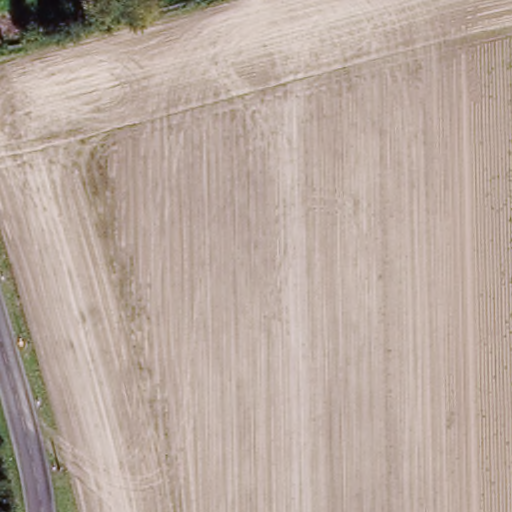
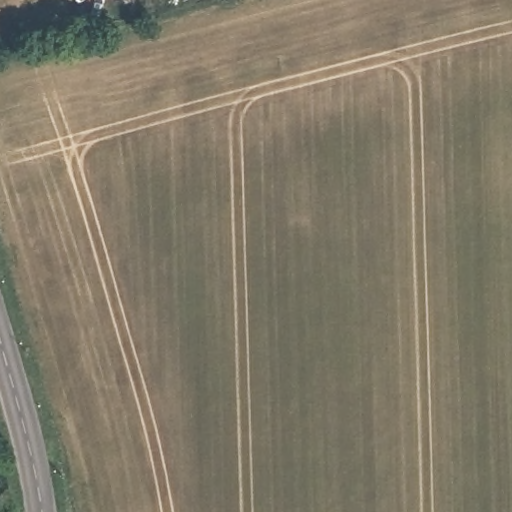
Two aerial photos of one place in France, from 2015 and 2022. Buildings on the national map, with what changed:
[]

